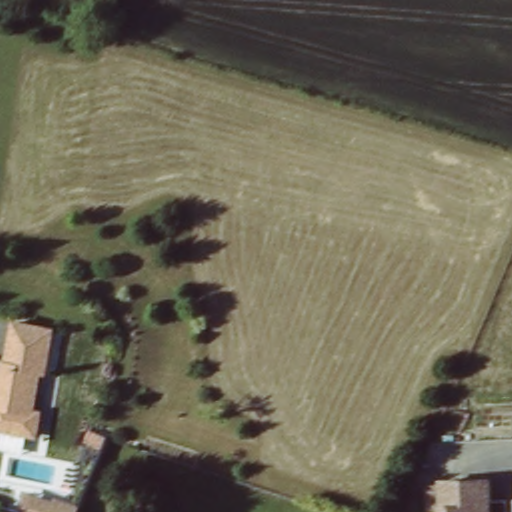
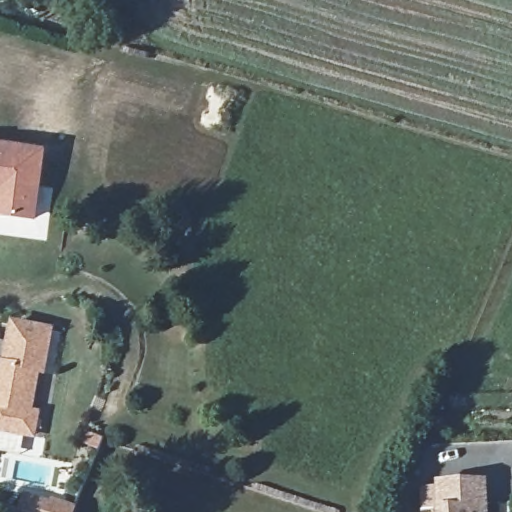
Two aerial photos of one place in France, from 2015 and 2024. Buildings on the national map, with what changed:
new [(37,221),(0,216),(0,140),(47,146),(37,221)]
unchanged [(50,329),(61,332),(53,377),(38,377),(32,412),(40,413),(34,441),(0,434),(0,356),(7,321),(50,329)]
unchanged [(442,491),(487,490),(487,512),(443,512),(442,491)]
new [(37,497),(79,510),(78,512),(32,512),(37,497)]

